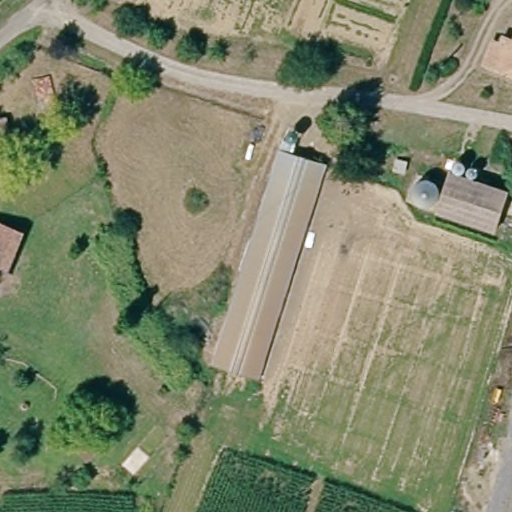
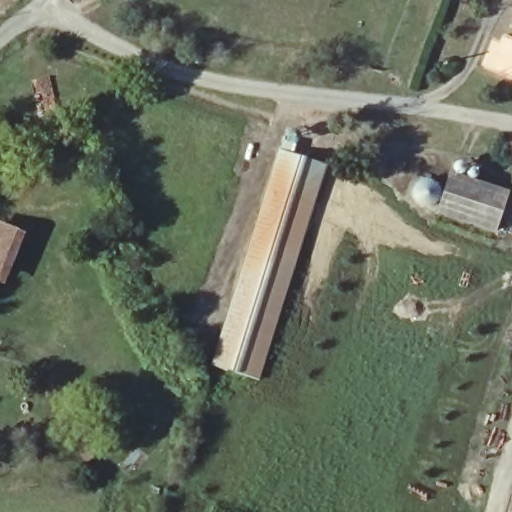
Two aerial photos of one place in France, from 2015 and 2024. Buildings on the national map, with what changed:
unchanged [(494,51),(502,55),(505,44),(512,47),(512,78),(487,69),(494,51)]
unchanged [(281,162),(290,165),(326,177),(265,377),(221,362),(247,276),(281,162)]
unchanged [(498,235),(444,219),(456,175),(511,191),(498,235)]
unchanged [(1,224),(22,231),(8,272),(0,295),(0,226),(1,224)]

